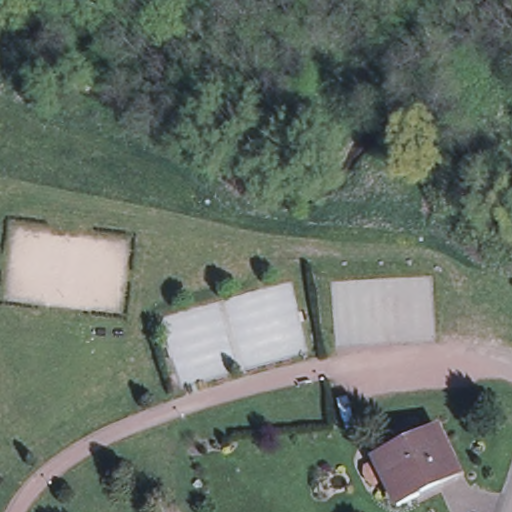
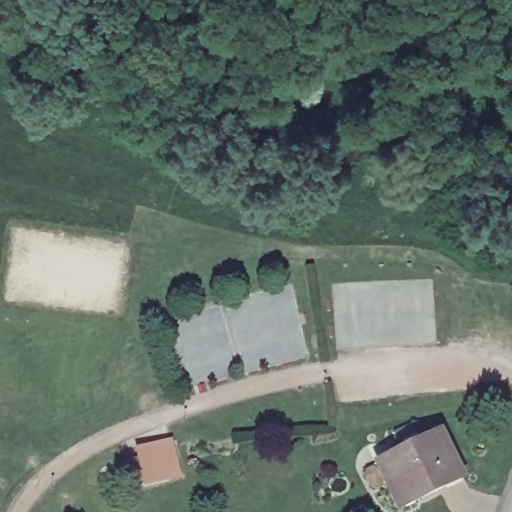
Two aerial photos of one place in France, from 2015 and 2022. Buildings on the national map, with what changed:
unchanged [(442,433),(465,478),(403,510),(380,465),(442,433)]
new [(170,439),(179,473),(171,475),(147,481),(138,447),(162,441),(170,439)]

